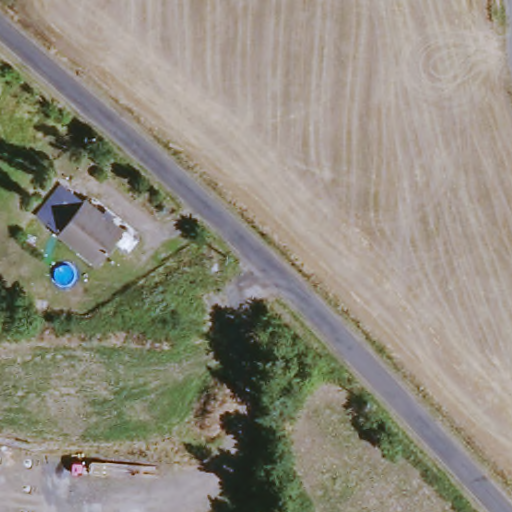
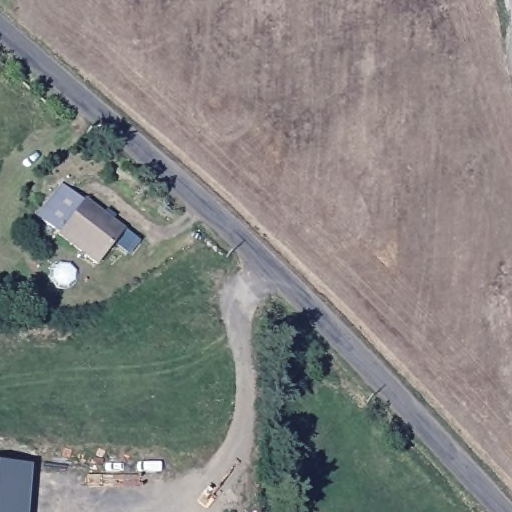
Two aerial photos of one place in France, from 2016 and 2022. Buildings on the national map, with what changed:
unchanged [(144,237),(120,273),(49,229),(75,190),(144,237)]
new [(31,466),(27,512),(0,512),(0,463),(31,466)]
unchanged [(301,512),(303,505),(319,507),(318,512),(301,512)]

